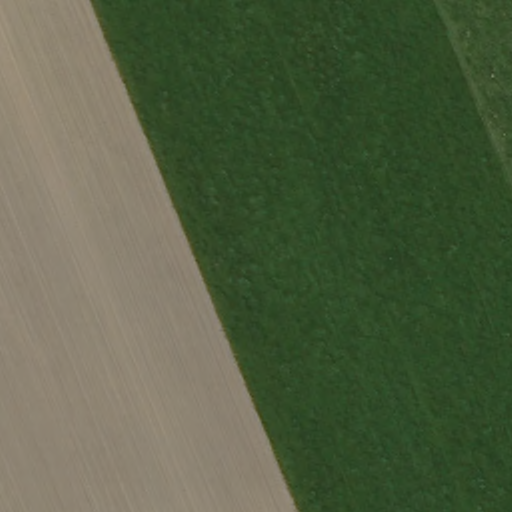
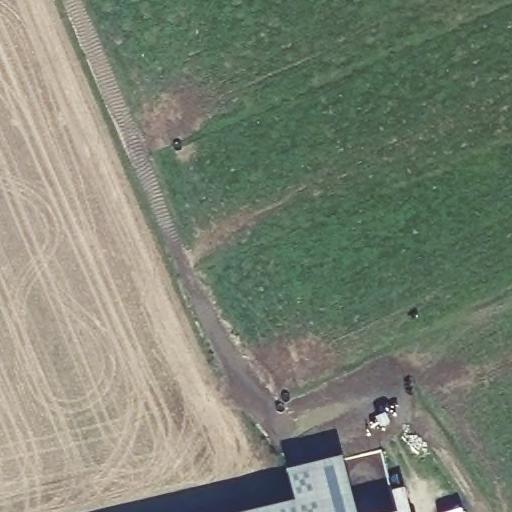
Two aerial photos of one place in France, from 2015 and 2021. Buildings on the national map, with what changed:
new [(354,512),(257,512),(293,503),(285,471),(341,457),(354,512)]

